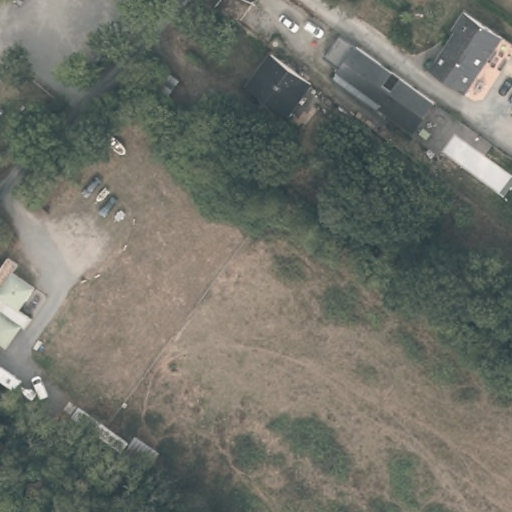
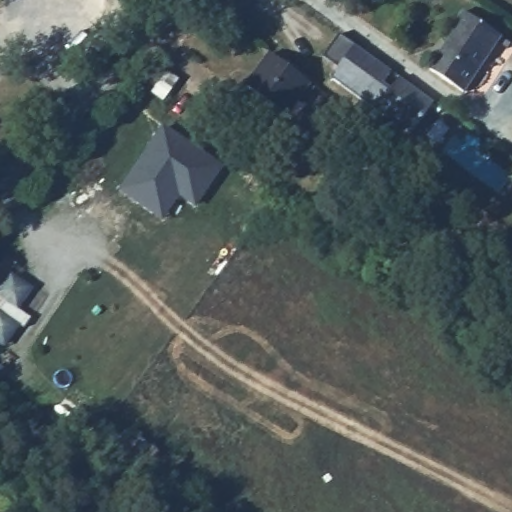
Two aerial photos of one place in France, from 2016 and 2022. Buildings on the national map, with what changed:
unchanged [(506,39),(464,100),(428,76),(459,34),(452,27),(466,9),(506,39)]
unchanged [(340,35),(433,103),(411,134),(332,79),(340,69),(325,56),(340,35)]
unchanged [(307,84),(283,115),(243,85),(266,53),(307,84)]
new [(166,126),(226,165),(197,206),(181,196),(164,220),(121,190),(166,126)]
unchanged [(17,262),(11,272),(36,290),(21,311),(31,319),(8,349),(0,345),(0,269),(9,256),(17,262)]

